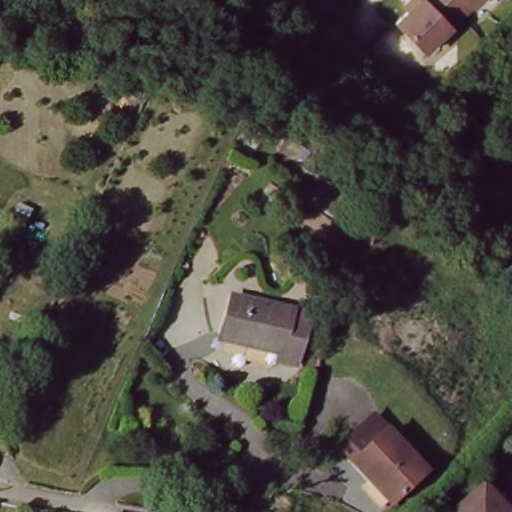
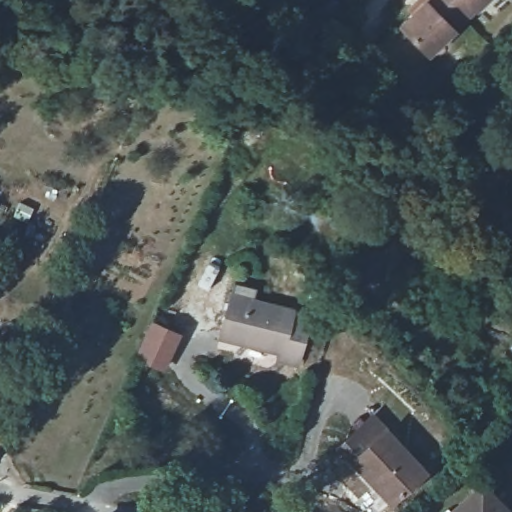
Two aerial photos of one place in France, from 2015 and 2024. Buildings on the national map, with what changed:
unchanged [(434,58),(399,23),(422,0),(495,0),(434,58)]
unchanged [(311,315),(300,366),(281,361),(283,355),(252,347),(252,344),(224,337),(232,297),(311,315)]
new [(165,372),(135,359),(151,320),(182,333),(165,372)]
unchanged [(398,508),(360,466),(347,452),(380,421),(394,436),(432,477),(398,508)]
unchanged [(509,512),(451,512),(482,483),(509,512)]

